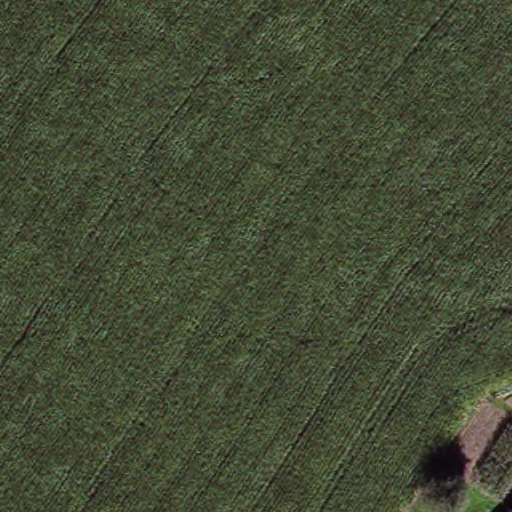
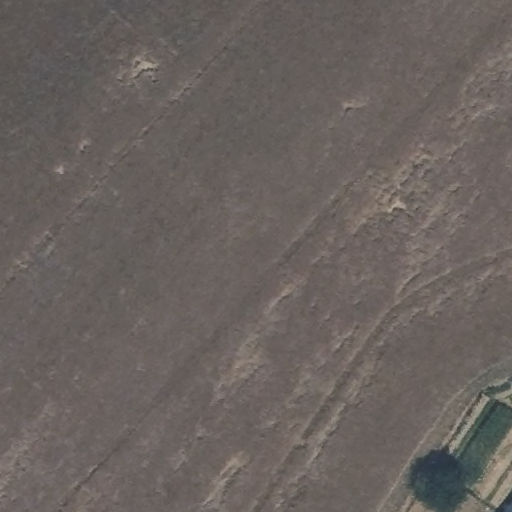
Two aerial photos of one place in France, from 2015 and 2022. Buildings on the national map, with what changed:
unchanged [(503,512),(512,500),(512,512),(503,512)]

